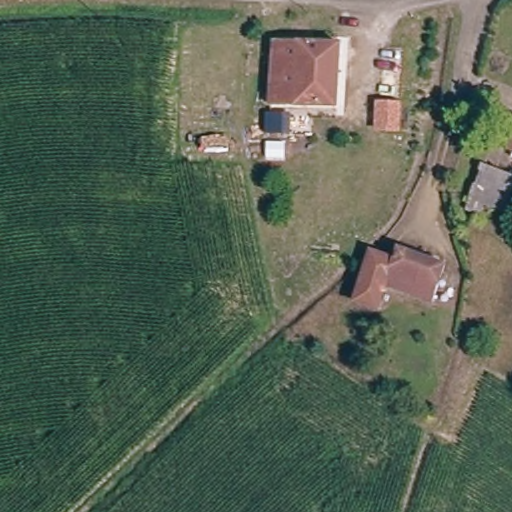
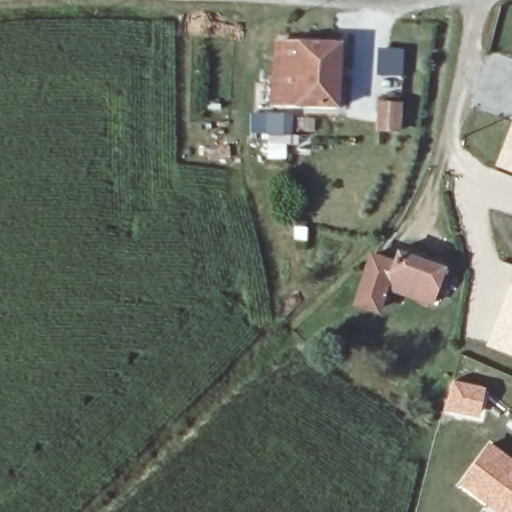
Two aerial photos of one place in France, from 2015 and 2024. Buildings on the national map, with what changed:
unchanged [(338,48),(335,111),(272,107),(275,45),(338,48)]
unchanged [(402,103),(402,122),(379,121),(379,102),(402,103)]
unchanged [(512,153),(503,150),(512,125),(512,153)]
demolished [(512,180),(512,189),(503,213),(484,207),(480,216),(466,211),(481,169),(512,180)]
unchanged [(393,258),(398,247),(444,263),(432,299),(385,283),(377,306),(355,299),(371,250),(393,258)]
new [(512,355),(485,345),(512,280),(512,355)]
new [(451,378),(486,386),(479,417),(444,409),(451,378)]
new [(512,457),(512,512),(495,512),(457,483),(487,440),(512,457)]

